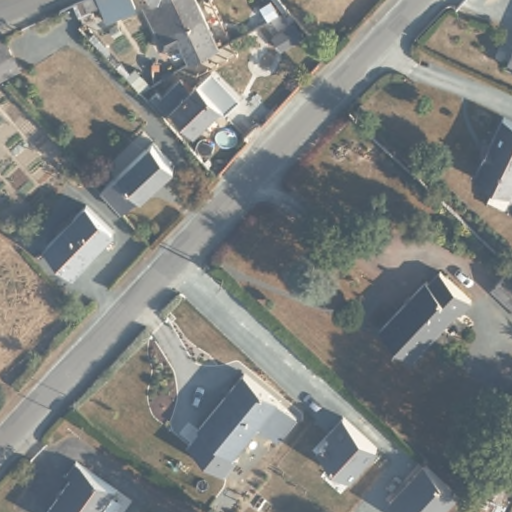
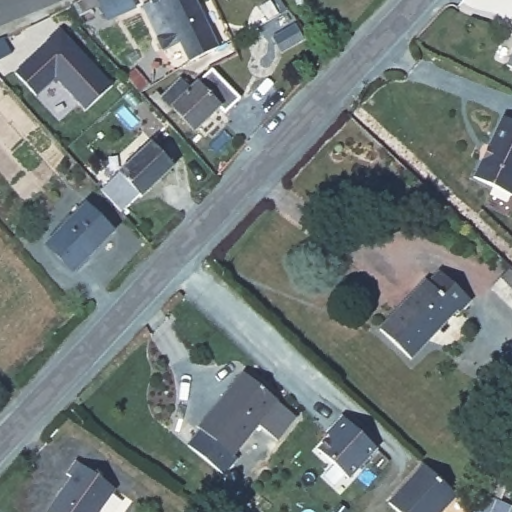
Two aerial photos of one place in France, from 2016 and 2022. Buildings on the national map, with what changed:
unchanged [(82,0),(136,0),(138,5),(107,18),(103,7),(83,20),(71,5),(82,0)]
unchanged [(164,50),(144,4),(150,1),(151,3),(158,0),(199,0),(206,16),(180,28),(185,41),(164,50)]
unchanged [(151,3),(150,1),(150,0),(158,0),(151,3)]
unchanged [(193,59),(185,41),(180,28),(206,16),(221,47),(193,59)]
new [(115,87),(86,111),(55,80),(37,96),(16,73),(60,30),(115,87)]
unchanged [(5,35),(11,50),(0,55),(0,37),(5,35)]
unchanged [(512,49),(512,67),(505,64),(512,49)]
unchanged [(201,131),(179,107),(171,114),(155,97),(160,92),(166,97),(184,77),(195,87),(201,81),(227,104),(201,131)]
unchanged [(0,81),(0,79),(1,80),(0,81)]
unchanged [(474,178),(503,117),(512,121),(512,193),(511,196),(474,178)]
unchanged [(110,182),(159,132),(182,156),(150,187),(148,186),(130,204),(110,182)]
unchanged [(76,261),(51,235),(86,197),(114,223),(76,261)]
unchanged [(510,266),(512,268),(512,303),(492,283),(510,266)]
unchanged [(469,300),(459,310),(455,307),(408,357),(377,325),(423,276),(426,280),(436,270),(469,300)]
unchanged [(295,413),(273,437),(258,424),(229,457),(194,425),(244,368),(295,413)]
unchanged [(370,445),(375,450),(348,480),(317,452),(325,443),(321,441),(325,436),(341,419),(370,445)]
unchanged [(99,512),(46,512),(68,477),(61,472),(70,458),(115,487),(99,512)]
unchanged [(459,495),(442,512),(397,512),(387,503),(425,464),(459,495)]
new [(512,504),(512,509),(511,512),(469,512),(478,492),(512,504)]

